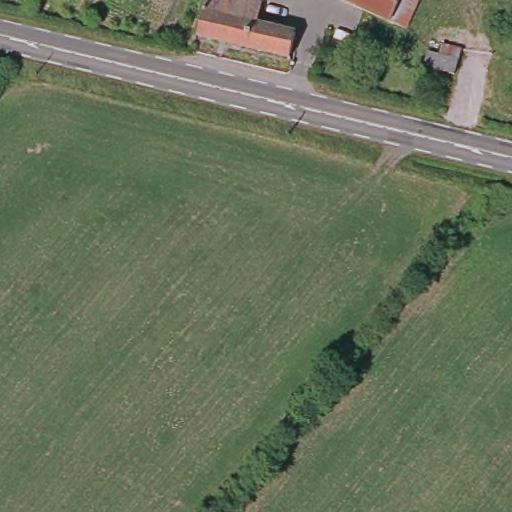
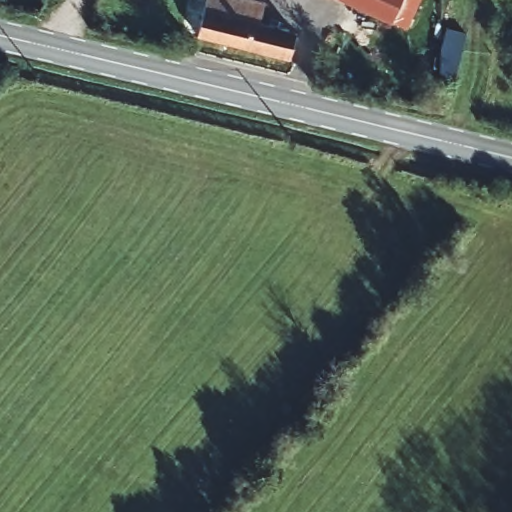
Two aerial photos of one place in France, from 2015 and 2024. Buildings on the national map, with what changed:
unchanged [(261,5),(258,24),(290,32),(285,56),(197,34),(202,0),(247,0),(261,5)]
unchanged [(350,2),(347,0),(351,0),(350,2)]
unchanged [(394,22),(350,2),(351,0),(403,0),(394,22)]
unchanged [(429,87),(429,82),(417,80),(419,65),(433,67),(450,72),(445,87),(439,87),(439,95),(433,95),(432,87),(429,87)]

